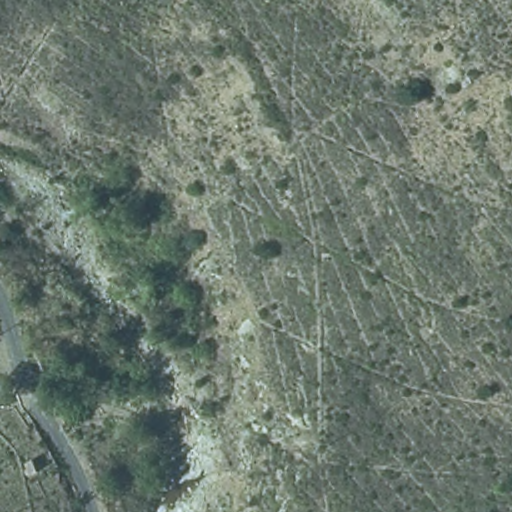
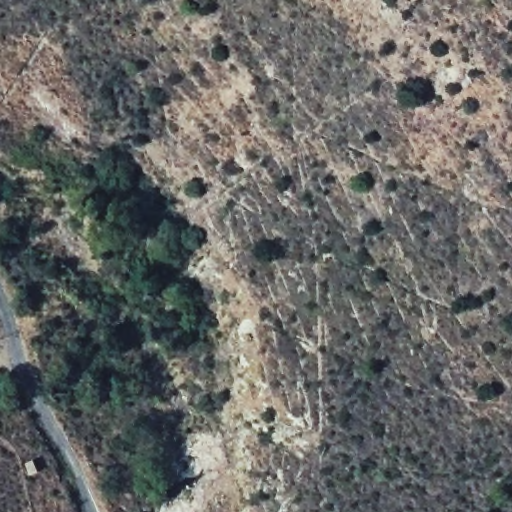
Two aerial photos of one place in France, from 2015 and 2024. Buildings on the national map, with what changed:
unchanged [(44,475),(28,472),(27,457),(37,454),(44,475)]

